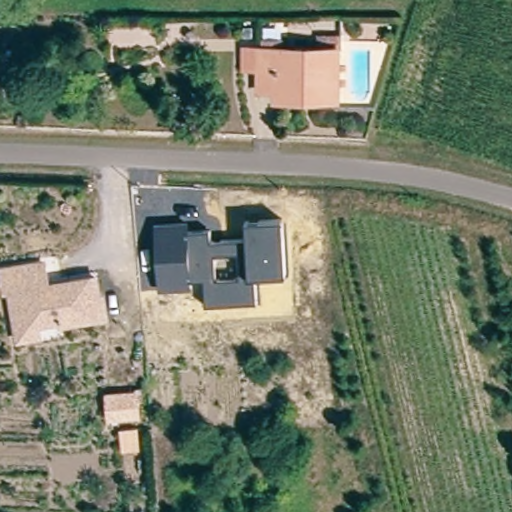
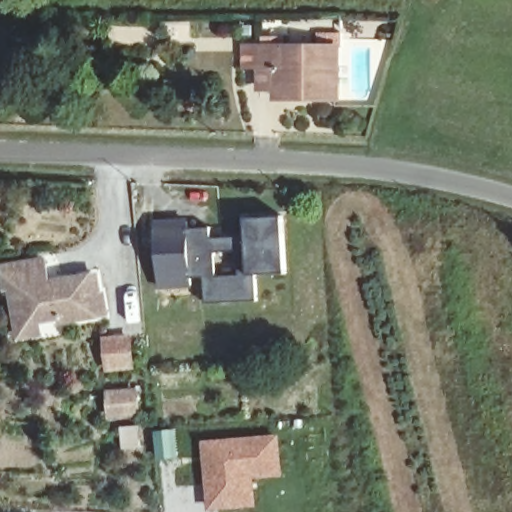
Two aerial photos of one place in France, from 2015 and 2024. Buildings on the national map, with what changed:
unchanged [(268,84),(269,69),(255,69),(255,45),(269,45),(329,47),(330,32),(345,33),(345,48),(343,95),(317,95),(287,95),(286,84),(268,84)]
unchanged [(284,217),(287,273),(257,275),(260,300),(205,304),(204,277),(190,278),(190,285),(157,288),(154,219),(188,217),(188,228),(210,227),(211,238),(246,234),(247,219),(284,217)]
unchanged [(20,330),(19,319),(13,280),(7,281),(5,259),(46,254),(50,279),(57,279),(57,276),(98,270),(101,290),(104,290),(107,309),(62,316),(64,324),(20,330)]
unchanged [(125,337),(130,365),(105,369),(101,340),(125,337)]
new [(132,391),(134,413),(107,415),(105,393),(132,391)]
new [(177,428),(177,458),(155,459),(153,429),(177,428)]
new [(278,434),(283,477),(255,479),(256,508),(210,512),(204,512),(199,439),(278,434)]

